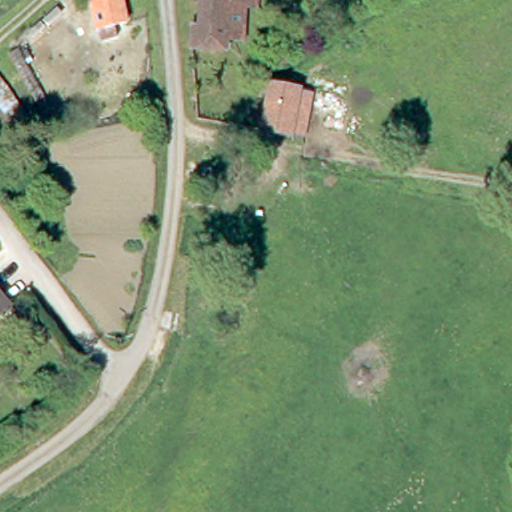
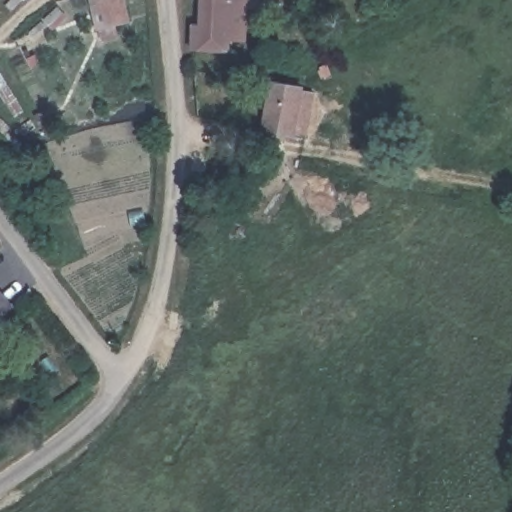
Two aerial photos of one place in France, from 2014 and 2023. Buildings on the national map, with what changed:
unchanged [(117,25),(120,37),(103,41),(95,0),(124,0),(129,22),(117,25)]
unchanged [(188,49),(189,25),(197,25),(197,0),(250,0),(250,6),(239,6),(239,40),(222,40),(222,49),(188,49)]
unchanged [(302,130),(290,127),(289,130),(259,125),(260,125),(265,95),(269,96),(272,96),(275,80),(298,85),(297,93),(308,95),(302,130)]
unchanged [(0,314),(0,296),(9,306),(0,314)]

